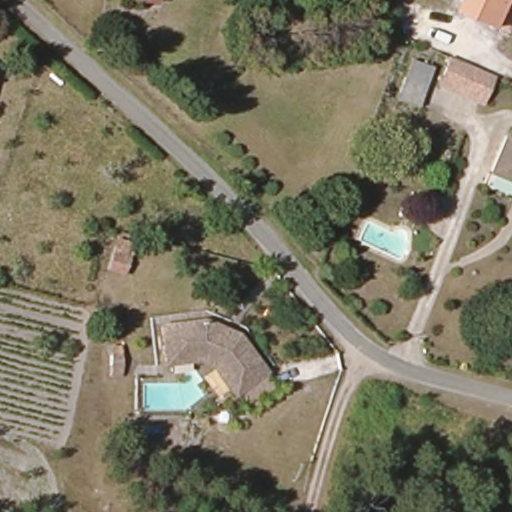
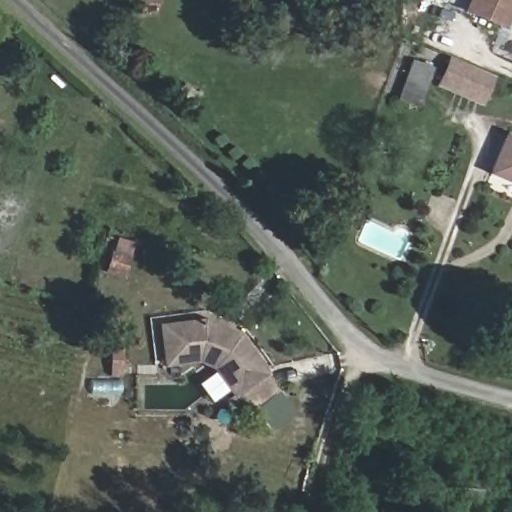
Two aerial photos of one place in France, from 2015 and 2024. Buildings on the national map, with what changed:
unchanged [(506,32),(463,13),(469,0),(512,0),(512,17),(506,32)]
unchanged [(481,104),(437,85),(447,56),(494,75),(481,104)]
unchanged [(512,138),(512,179),(494,170),(509,137),(512,138)]
unchanged [(137,242),(127,278),(107,273),(117,237),(137,242)]
unchanged [(246,408),(235,393),(217,366),(201,358),(165,362),(163,326),(197,324),(240,342),(262,375),(255,380),(265,395),(246,408)]

